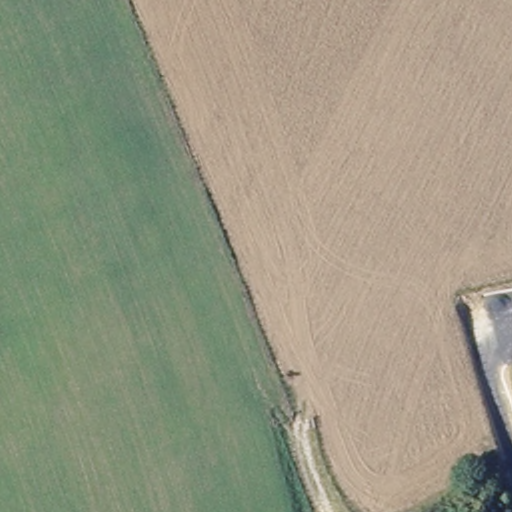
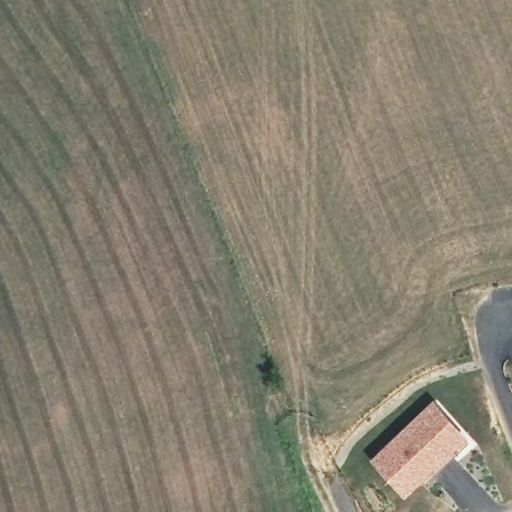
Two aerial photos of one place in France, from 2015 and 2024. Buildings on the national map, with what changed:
new [(469,436),(406,498),(369,460),(434,399),(469,436)]

